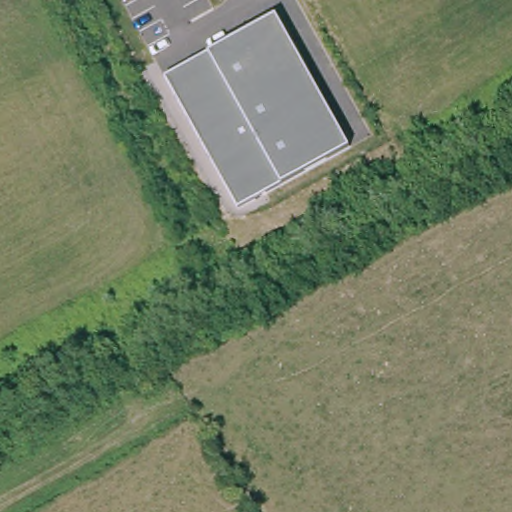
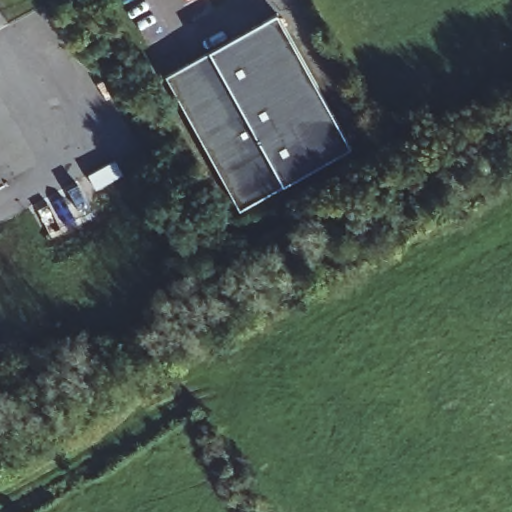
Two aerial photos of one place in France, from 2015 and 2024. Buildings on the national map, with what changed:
unchanged [(210,53),(277,16),(350,149),(283,186),(240,210),(166,78),(210,53)]

